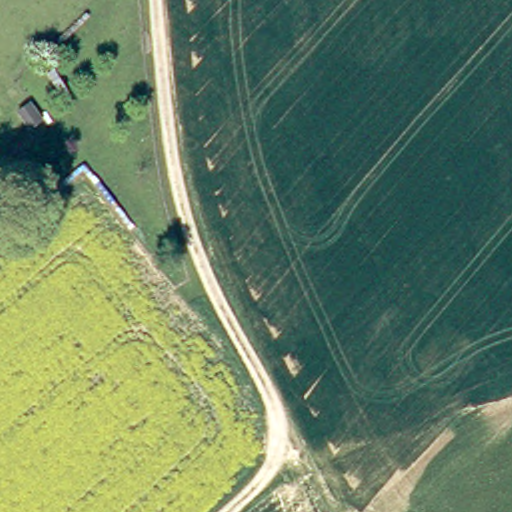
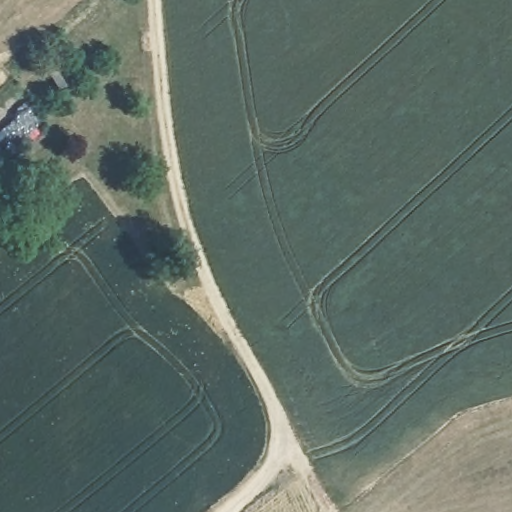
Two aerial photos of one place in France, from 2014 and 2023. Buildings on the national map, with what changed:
[]

